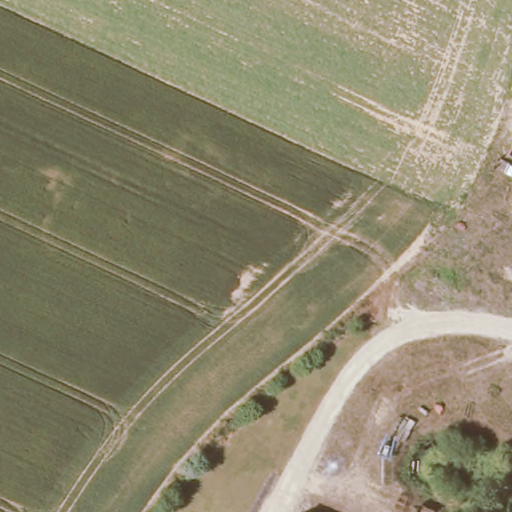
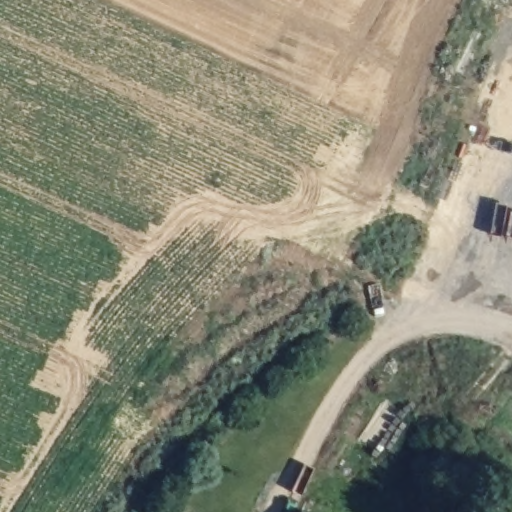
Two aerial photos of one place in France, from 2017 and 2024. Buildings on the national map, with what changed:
unchanged [(338,512),(308,512),(313,502),(338,512)]

